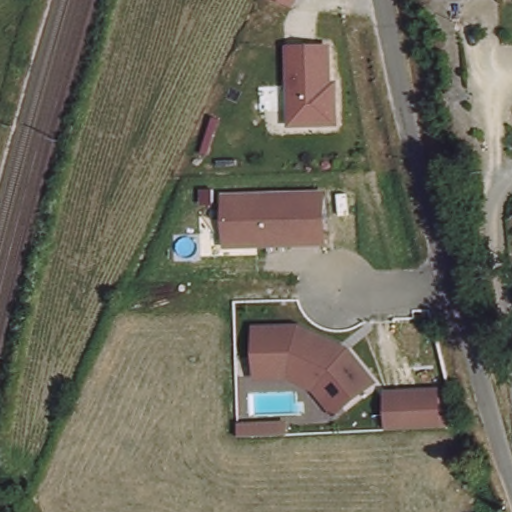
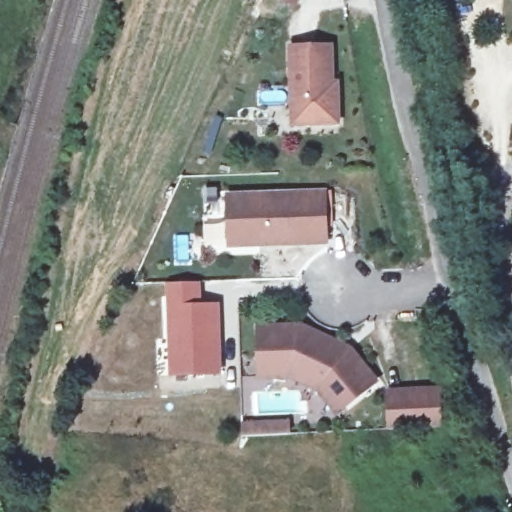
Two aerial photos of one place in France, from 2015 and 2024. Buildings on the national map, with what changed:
new [(294,7),(279,0),(298,0),(294,7)]
unchanged [(285,47),(332,45),(334,83),(339,83),(341,125),(291,127),(285,47)]
unchanged [(329,190),(331,246),(229,249),(226,194),(329,190)]
new [(201,305),(219,305),(221,375),(169,377),(167,282),(200,282),(201,305)]
unchanged [(300,324),(351,347),(379,384),(338,417),(316,393),(291,380),(258,381),(256,326),(300,324)]
unchanged [(444,387),(446,429),(387,431),(385,390),(444,387)]

